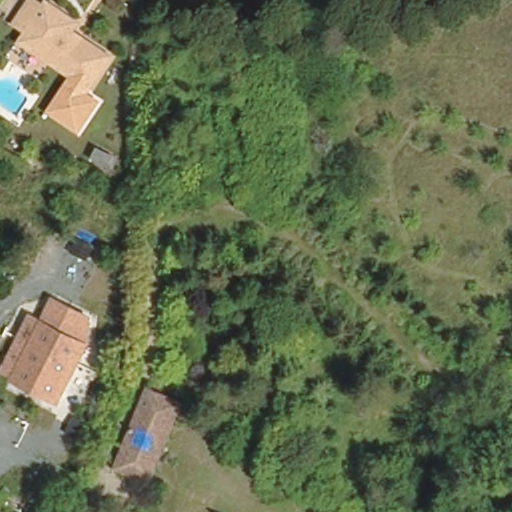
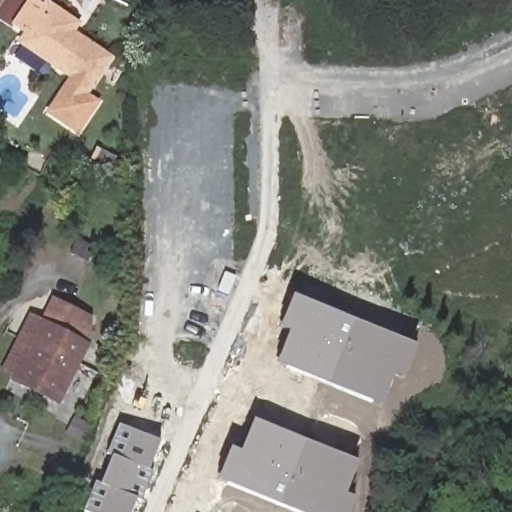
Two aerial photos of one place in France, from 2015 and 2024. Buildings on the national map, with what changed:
unchanged [(82,96),(93,105),(72,134),(43,112),(64,84),(69,87),(72,82),(17,41),(25,31),(15,23),(30,0),(34,0),(42,6),(45,1),(77,24),(75,27),(112,52),(85,91),(86,91),(82,96)]
unchanged [(116,157),(107,177),(87,168),(97,148),(116,157)]
unchanged [(95,246),(78,279),(67,273),(84,240),(95,246)]
new [(417,346),(403,380),(393,375),(380,405),(277,362),(288,332),(279,327),(293,295),(417,346)]
unchanged [(47,401),(5,380),(46,298),(80,315),(77,343),(47,401)]
unchanged [(97,353),(68,411),(47,401),(77,343),(97,353)]
demolished [(186,407),(155,486),(121,472),(154,394),(186,407)]
new [(346,493),(356,498),(350,512),(302,512),(218,478),(231,447),(240,451),(254,419),(359,462),(346,493)]
new [(149,470),(154,472),(141,500),(136,497),(130,512),(87,512),(84,511),(96,481),(101,483),(112,455),(107,453),(120,423),(161,440),(149,470)]

